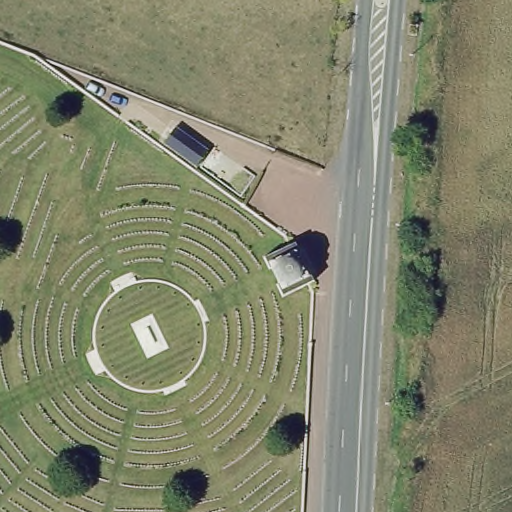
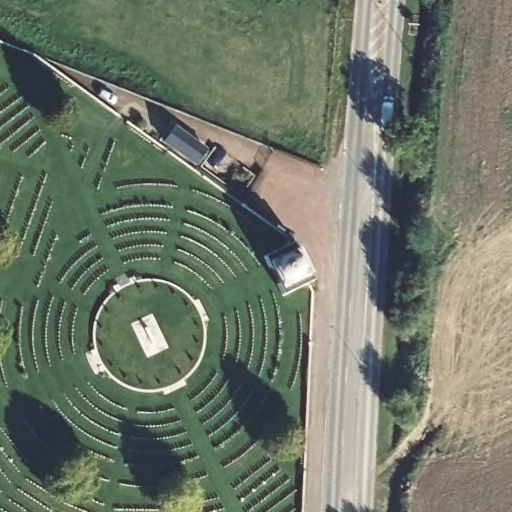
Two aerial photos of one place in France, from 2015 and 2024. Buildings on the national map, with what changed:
unchanged [(212,147),(201,165),(163,140),(173,124),(212,147)]
unchanged [(314,277),(284,295),(262,256),(293,237),(314,277)]

